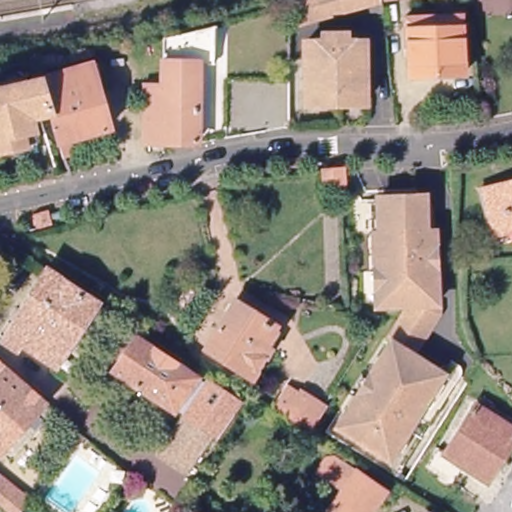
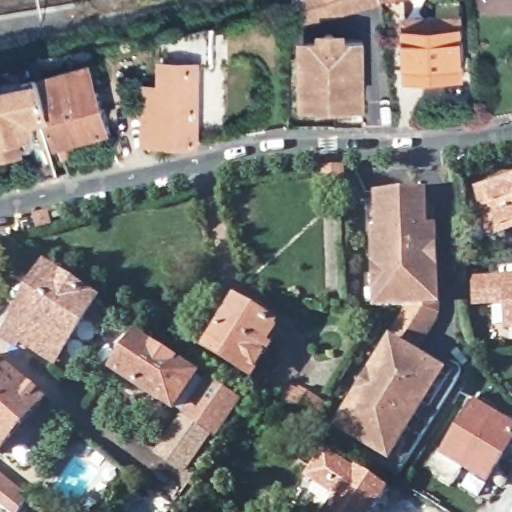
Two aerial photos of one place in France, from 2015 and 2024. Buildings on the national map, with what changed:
unchanged [(388,0),(306,28),(307,0),(388,0)]
unchanged [(406,18),(462,18),(466,75),(409,76),(406,18)]
unchanged [(202,141),(153,141),(154,89),(170,89),(171,38),(219,28),(219,64),(203,64),(202,141)]
unchanged [(329,104),(300,106),(299,97),(297,46),(313,46),(314,37),(316,34),(323,35),(324,36),(324,45),(356,44),(359,94),(359,103),(329,104)]
unchanged [(75,147),(76,151),(64,154),(60,141),(53,109),(43,73),(95,61),(114,127),(110,127),(113,136),(75,147)]
unchanged [(53,109),(34,114),(36,127),(25,130),(28,141),(0,147),(0,84),(43,73),(53,109)]
unchanged [(346,184),(324,185),(323,172),(346,169),(346,184)]
unchanged [(512,181),(512,232),(495,236),(483,189),(512,181)]
unchanged [(449,380),(393,473),(319,427),(377,335),(382,338),(405,301),(372,301),(372,280),(372,266),(372,245),(379,245),(379,230),(376,230),(376,193),(407,193),(424,192),(424,209),(424,228),(432,228),(433,264),(434,310),(408,353),(449,380)]
unchanged [(16,352),(4,343),(47,275),(91,305),(50,367),(19,347),(16,352)]
new [(505,331),(504,306),(472,306),(471,277),(512,275),(512,331),(505,331)]
unchanged [(277,332),(249,377),(208,350),(235,305),(277,332)]
unchanged [(190,382),(169,417),(108,377),(130,343),(190,382)]
unchanged [(0,460),(0,372),(44,411),(0,460)]
unchanged [(178,417),(202,382),(234,404),(210,439),(205,435),(179,473),(154,455),(179,418),(178,417)]
unchanged [(285,386),(323,408),(309,430),(273,408),(285,386)]
unchanged [(512,426),(512,444),(492,477),(468,462),(458,479),(432,462),(443,446),(452,452),(481,405),(512,426)]
unchanged [(343,490),(320,473),(333,456),(387,497),(374,512),(326,512),(343,490)]
unchanged [(27,502),(20,512),(10,512),(0,504),(0,479),(28,501),(27,502)]

